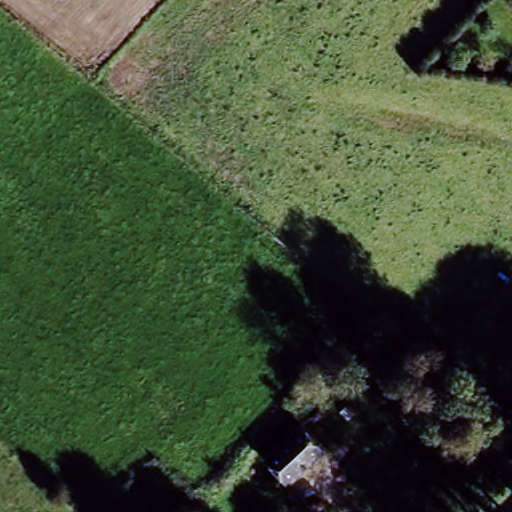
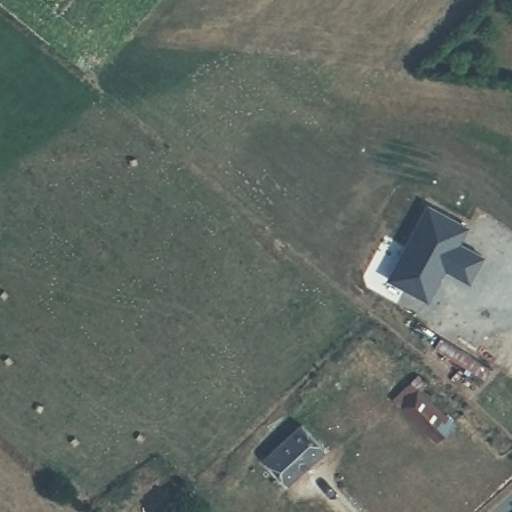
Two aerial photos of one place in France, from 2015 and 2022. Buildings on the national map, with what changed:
new [(443,268),(427,300),(388,279),(427,206),(465,228),(457,245),(481,257),(468,280),(443,268)]
unchanged [(414,400),(421,405),(427,401),(452,425),(430,449),(405,426),(407,423),(400,416),(414,400)]
unchanged [(257,460),(293,425),(315,446),(290,470),(277,482),(257,460)]

